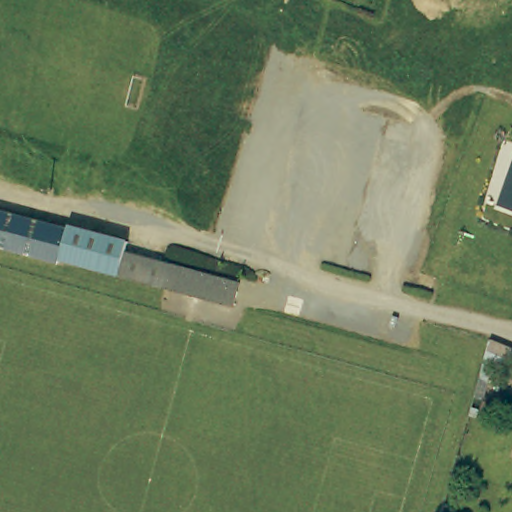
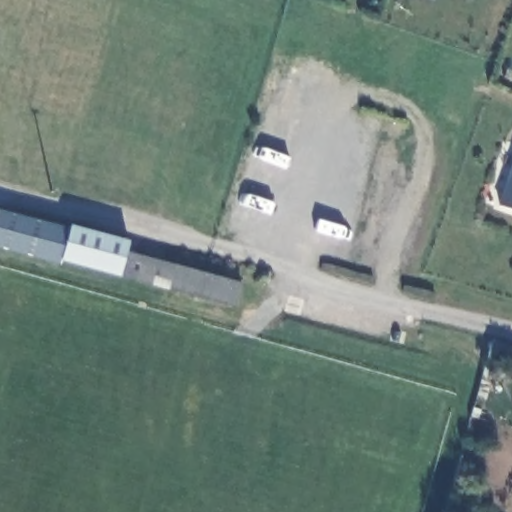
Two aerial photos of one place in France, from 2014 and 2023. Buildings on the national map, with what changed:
unchanged [(499,206),(512,167),(512,210),(499,206)]
unchanged [(59,266),(0,249),(0,211),(69,230),(61,261),(59,266)]
unchanged [(70,226),(128,242),(125,251),(242,278),(235,302),(61,261),(70,226)]
unchanged [(508,347),(501,376),(482,371),(489,339),(508,347)]

